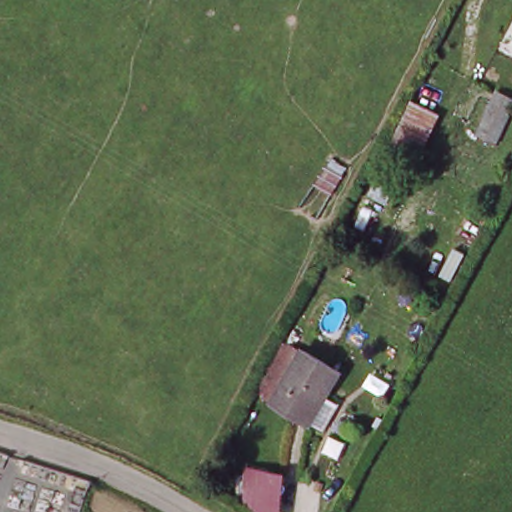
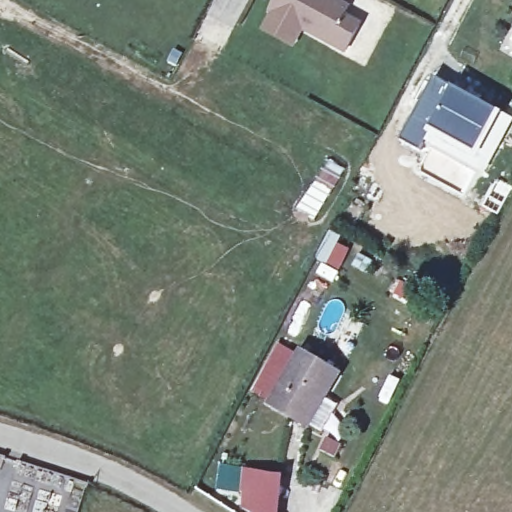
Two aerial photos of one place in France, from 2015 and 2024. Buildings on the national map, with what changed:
new [(349,6),(344,14),(361,23),(344,54),(303,31),(293,48),(259,30),(268,13),(266,12),(273,0),(339,0),(349,6)]
new [(436,77),(455,86),(432,130),(421,151),(401,139),(436,77)]
new [(455,86),(501,112),(477,153),(432,130),(455,86)]
new [(499,88),(512,93),(512,104),(499,131),(483,123),(499,88)]
unchanged [(297,353),(341,375),(327,399),(340,406),(324,433),(311,425),(309,429),(266,407),(269,404),(251,395),(281,344),(297,353)]
unchanged [(280,512),(250,512),(254,471),(283,480),(280,512)]

